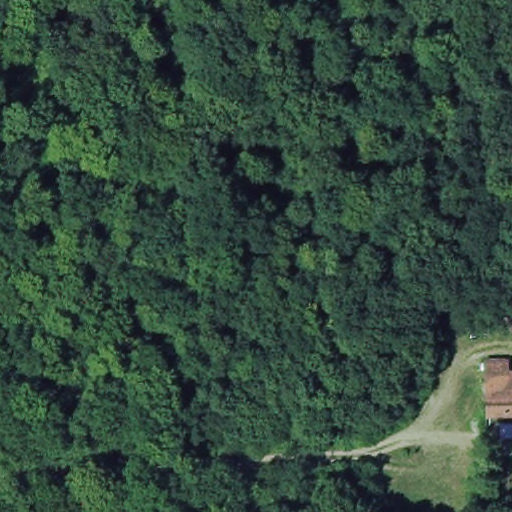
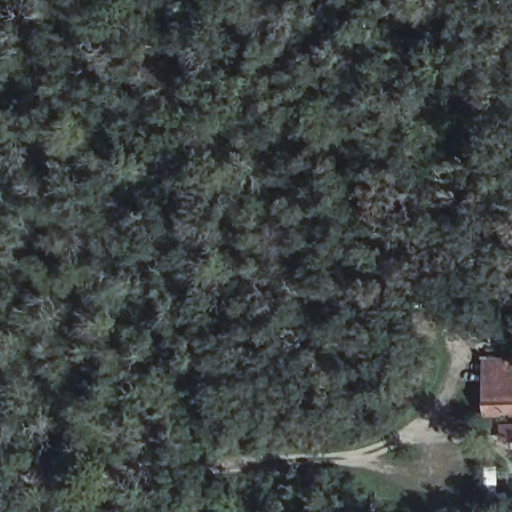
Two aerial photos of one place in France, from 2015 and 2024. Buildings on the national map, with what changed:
unchanged [(512,383),(512,400),(484,401),(484,383),(512,383)]
unchanged [(484,401),(512,400),(512,417),(484,418),(484,401)]

